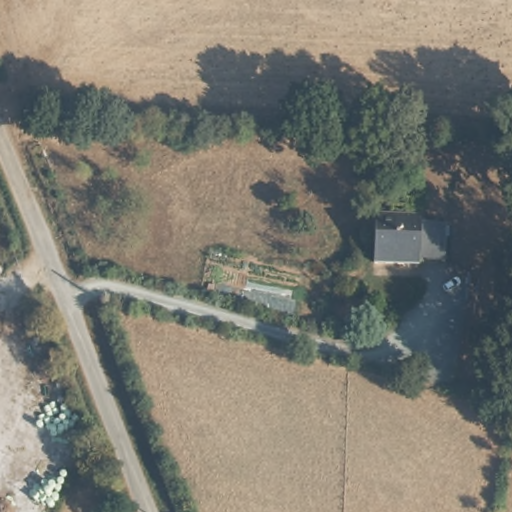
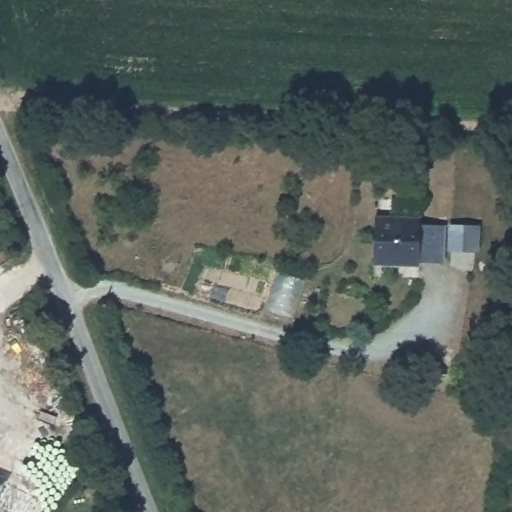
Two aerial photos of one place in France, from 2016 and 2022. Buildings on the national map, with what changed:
unchanged [(417,260),(417,264),(372,261),(374,212),(419,215),(419,224),(442,225),(442,240),(442,261),(417,260)]

